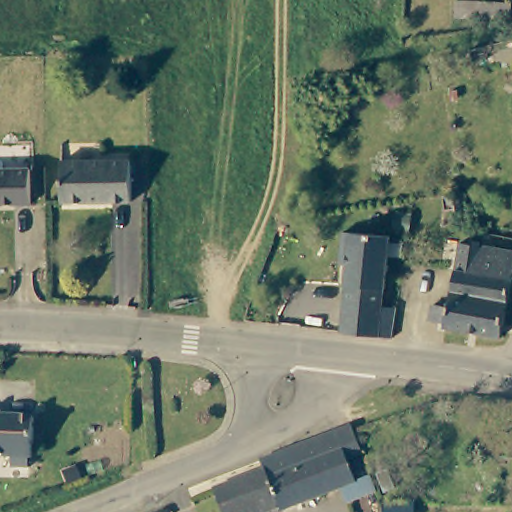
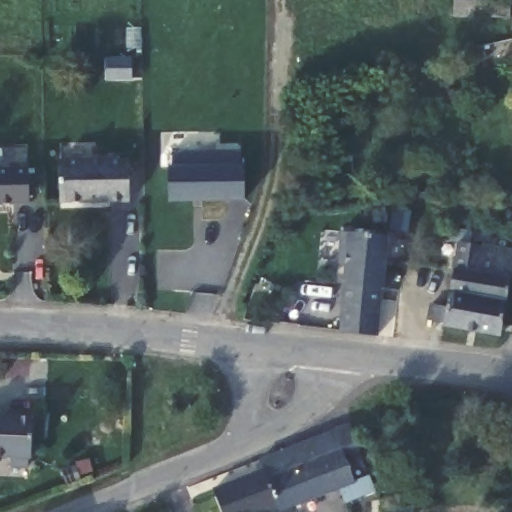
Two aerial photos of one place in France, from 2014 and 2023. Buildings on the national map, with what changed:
unchanged [(512,14),(491,15),(491,0),(512,0),(512,14)]
demolished [(512,57),(484,63),(480,44),(512,39),(512,57)]
new [(240,151),(240,166),(244,166),(244,200),(170,201),(168,167),(172,167),(174,152),(240,151)]
unchanged [(130,163),(130,200),(65,199),(65,162),(130,163)]
unchanged [(27,174),(26,207),(0,207),(0,173),(27,174)]
unchanged [(471,205),(448,208),(446,197),(470,193),(471,205)]
unchanged [(351,286),(353,255),(345,254),(347,233),(394,236),(390,289),(389,289),(387,308),(350,305),(351,286)]
unchanged [(436,305),(453,308),(458,278),(447,276),(453,242),(465,244),(512,250),(512,315),(508,335),(433,322),(436,305)]
unchanged [(348,334),(350,305),(387,308),(385,336),(348,334)]
unchanged [(40,417),(39,458),(35,458),(35,468),(17,468),(17,457),(0,456),(0,415),(40,417)]
unchanged [(355,419),(365,444),(350,451),(365,488),(348,494),(342,481),(264,512),(261,512),(246,475),(241,465),(355,419)]
unchanged [(246,475),(261,512),(202,512),(196,495),(246,475)]

